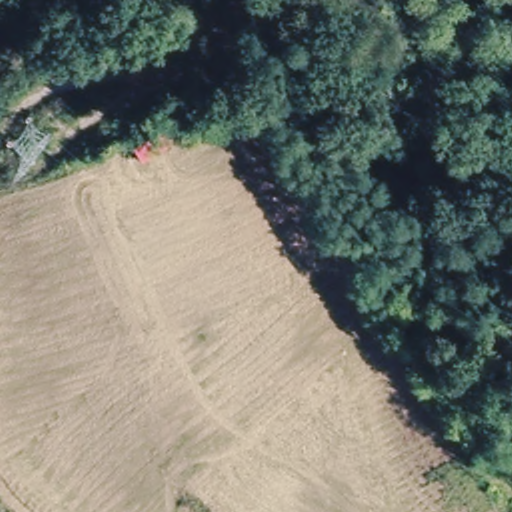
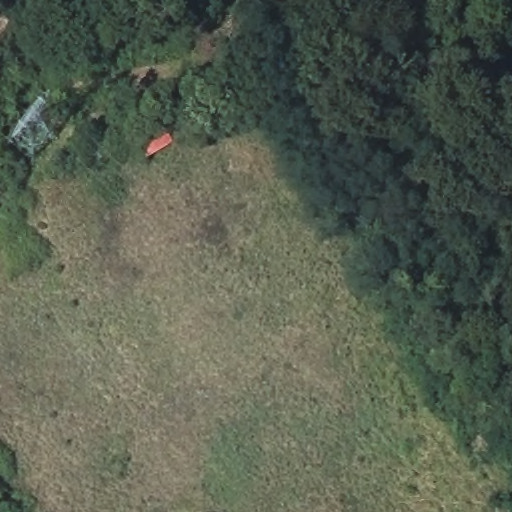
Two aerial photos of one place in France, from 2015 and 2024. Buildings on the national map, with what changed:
unchanged [(134,147),(167,129),(175,144),(143,163),(134,147)]

